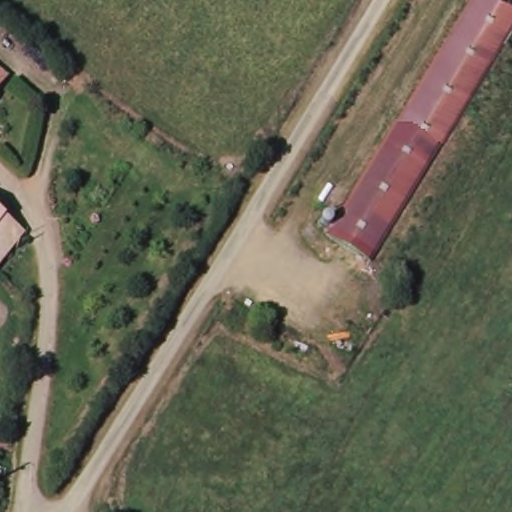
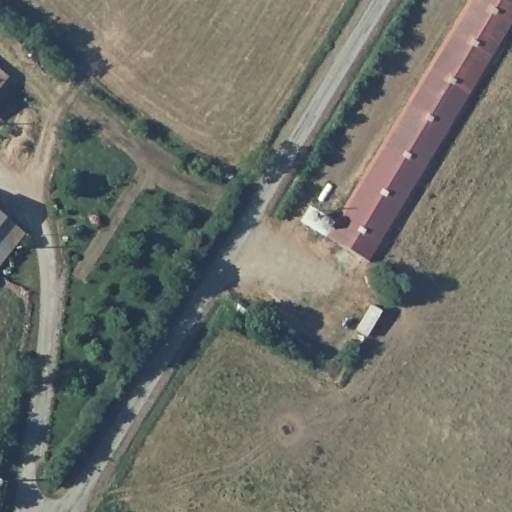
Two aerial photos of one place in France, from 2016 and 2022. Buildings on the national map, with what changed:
unchanged [(324,239),(470,0),(511,0),(512,0),(512,31),(368,266),(324,239)]
unchanged [(0,80),(4,84),(0,88),(0,80)]
unchanged [(0,254),(0,213),(19,229),(0,254)]

